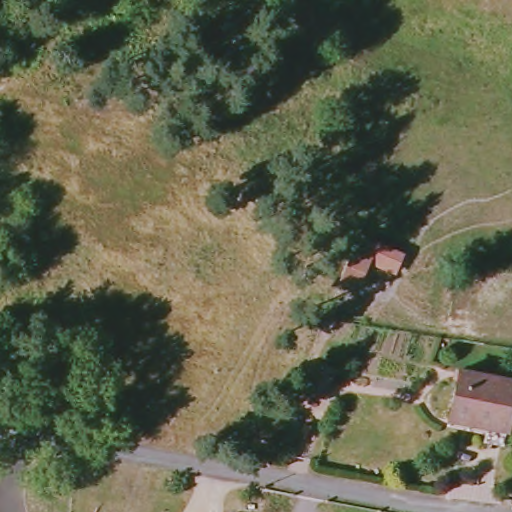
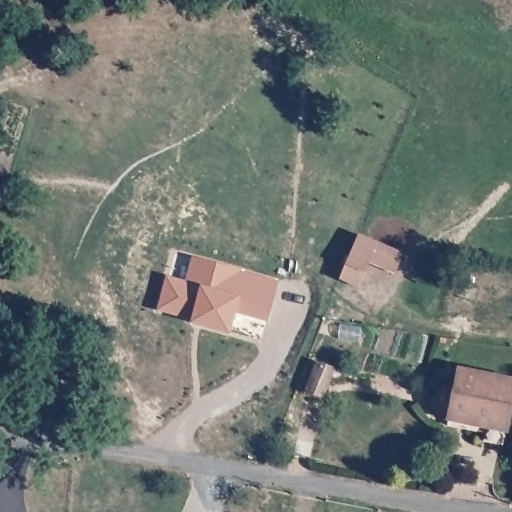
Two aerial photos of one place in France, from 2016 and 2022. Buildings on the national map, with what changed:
new [(340,280),(359,235),(402,254),(396,275),(369,263),(358,287),(340,280)]
new [(194,258),(238,272),(240,268),(277,278),(267,318),(240,311),(233,337),(186,325),(187,320),(154,313),(164,272),(169,273),(175,255),(194,258)]
unchanged [(326,398),(312,393),(322,365),(338,372),(326,398)]
unchanged [(448,420),(461,371),(512,385),(512,408),(505,432),(448,420)]

